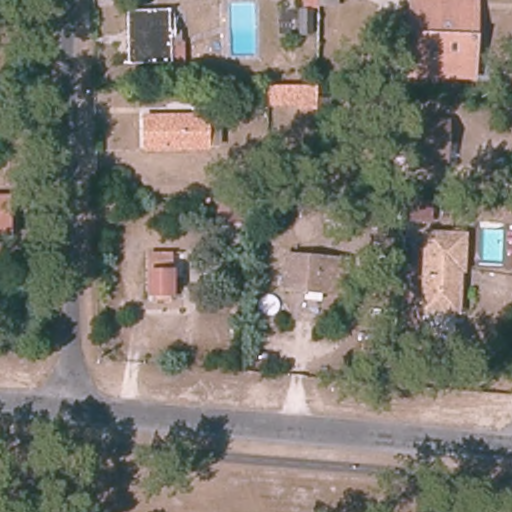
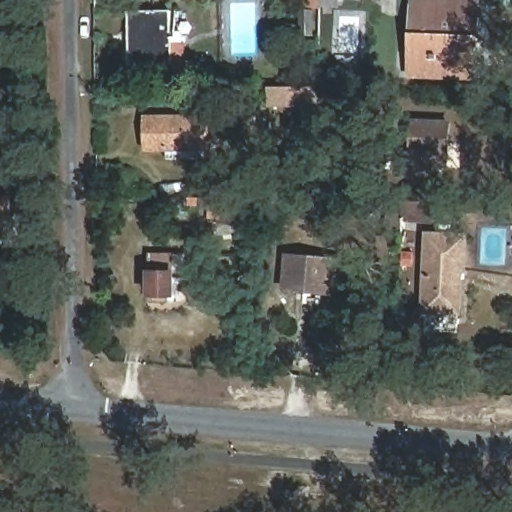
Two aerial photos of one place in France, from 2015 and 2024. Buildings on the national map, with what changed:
unchanged [(321,0),(321,45),(279,43),(280,0),(321,0)]
unchanged [(474,76),(457,75),(405,71),(409,7),(471,11),(477,11),(474,76)]
unchanged [(178,69),(136,68),(136,14),(180,14),(178,69)]
unchanged [(315,88),(314,109),(298,109),(298,103),(267,103),(267,89),(315,88)]
unchanged [(210,150),(147,150),(147,119),(209,119),(210,150)]
unchanged [(446,171),(409,168),(411,122),(447,124),(446,171)]
unchanged [(0,237),(0,200),(14,200),(15,237),(0,237)]
unchanged [(405,202),(436,203),(434,225),(404,223),(405,202)]
unchanged [(465,269),(461,269),(460,311),(427,310),(431,234),(467,237),(465,269)]
unchanged [(177,301),(156,300),(156,256),(177,256),(177,301)]
unchanged [(345,296),(284,290),(287,258),(348,263),(345,296)]

